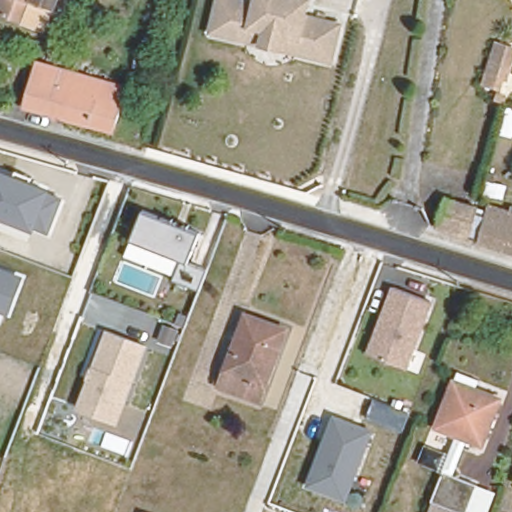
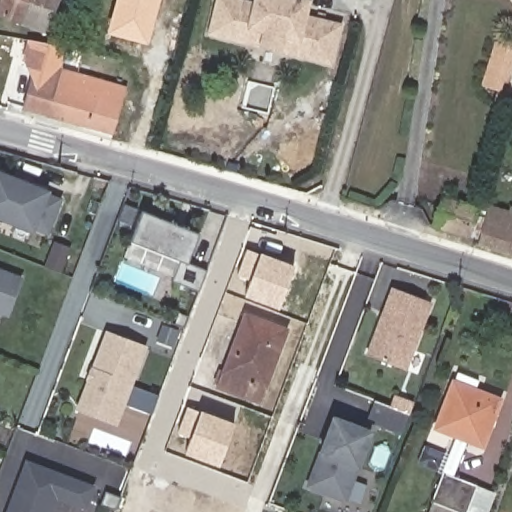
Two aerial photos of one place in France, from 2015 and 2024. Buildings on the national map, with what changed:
unchanged [(0,12),(0,0),(25,0),(18,19),(0,12)]
unchanged [(34,0),(37,0),(37,1),(34,0)]
new [(106,32),(115,0),(159,0),(147,43),(106,32)]
unchanged [(341,23),(331,63),(205,33),(213,0),(310,0),(308,15),(341,23)]
unchanged [(512,49),(512,70),(508,82),(489,76),(499,44),(512,49)]
unchanged [(114,132),(28,107),(39,64),(125,88),(114,132)]
unchanged [(512,107),(512,140),(498,134),(507,105),(512,107)]
unchanged [(0,215),(0,172),(64,196),(48,234),(0,215)]
unchanged [(508,187),(504,199),(484,193),(488,181),(508,187)]
unchanged [(463,204),(468,206),(484,210),(485,206),(505,212),(507,207),(512,209),(512,255),(474,243),(474,241),(465,238),(455,235),(432,228),(441,198),(463,204)]
unchanged [(200,291),(176,279),(182,260),(133,243),(144,212),(200,233),(188,263),(209,270),(200,291)]
new [(277,308),(244,295),(250,279),(237,274),(248,247),(261,251),(294,264),(277,308)]
unchanged [(0,312),(0,268),(25,277),(12,316),(0,312)]
unchanged [(430,302),(404,369),(363,353),(388,286),(430,302)]
unchanged [(256,398),(214,382),(242,309),(285,324),(256,398)]
unchanged [(119,426),(76,410),(107,329),(149,345),(119,426)]
unchanged [(485,447),(436,429),(454,380),(503,399),(485,447)]
new [(372,399),(410,412),(402,431),(365,419),(372,399)]
new [(219,465),(184,452),(190,437),(177,432),(188,405),(200,409),(234,422),(219,465)]
unchanged [(347,501),(307,487),(334,416),(374,429),(347,501)]
new [(56,501),(52,512),(3,512),(24,458),(95,485),(85,511),(56,501)]
unchanged [(434,501),(446,472),(478,485),(497,492),(490,512),(431,512),(434,501)]

